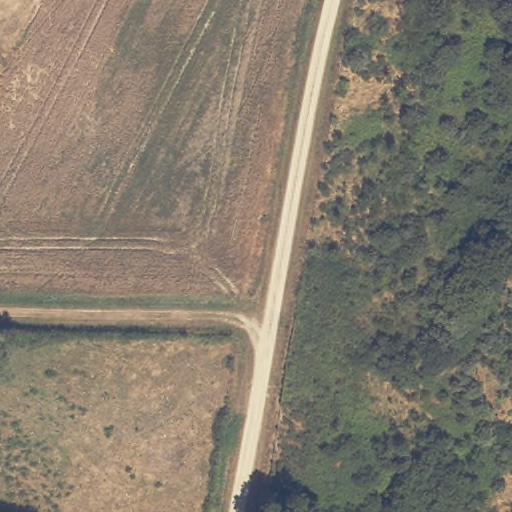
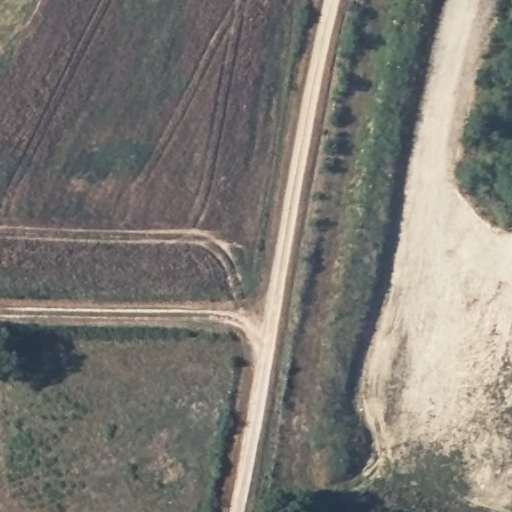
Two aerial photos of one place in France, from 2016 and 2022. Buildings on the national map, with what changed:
[]

